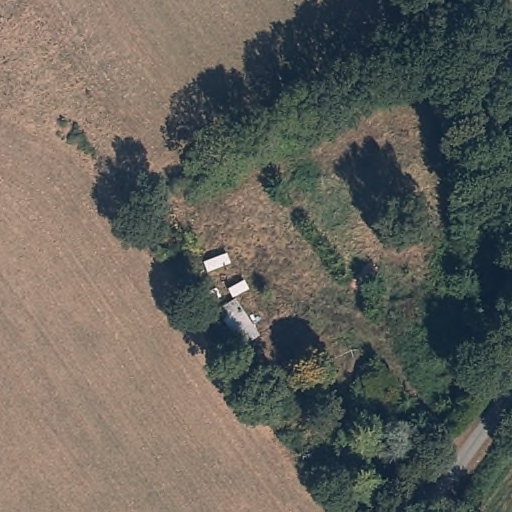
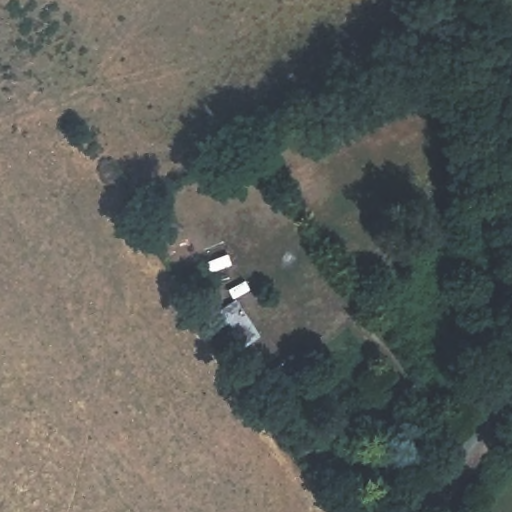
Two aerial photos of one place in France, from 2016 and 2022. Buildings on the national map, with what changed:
unchanged [(258,324),(237,340),(207,299),(226,285),(258,324)]

